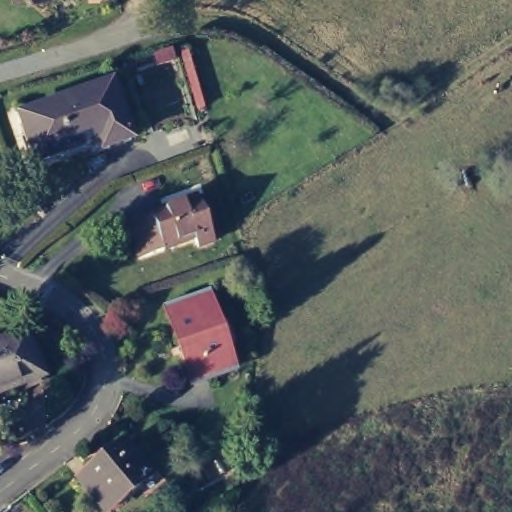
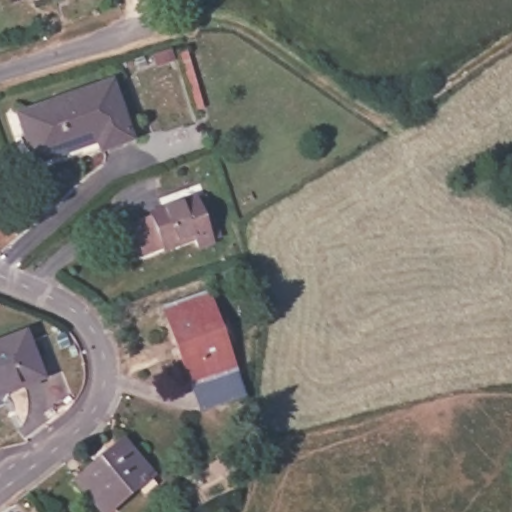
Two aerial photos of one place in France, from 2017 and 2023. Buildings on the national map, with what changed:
unchanged [(157,71),(152,52),(173,47),(179,66),(157,71)]
unchanged [(125,136),(97,145),(95,136),(32,155),(25,132),(30,130),(22,106),(108,80),(125,136)]
unchanged [(155,216),(202,199),(217,243),(202,249),(200,241),(167,253),(162,255),(137,261),(125,225),(145,218),(155,216)]
unchanged [(233,367),(195,381),(168,310),(207,296),(233,367)]
unchanged [(0,390),(0,350),(23,342),(25,345),(32,341),(45,376),(37,378),(37,382),(2,395),(0,390)]
unchanged [(114,512),(87,481),(131,442),(158,473),(114,512)]

